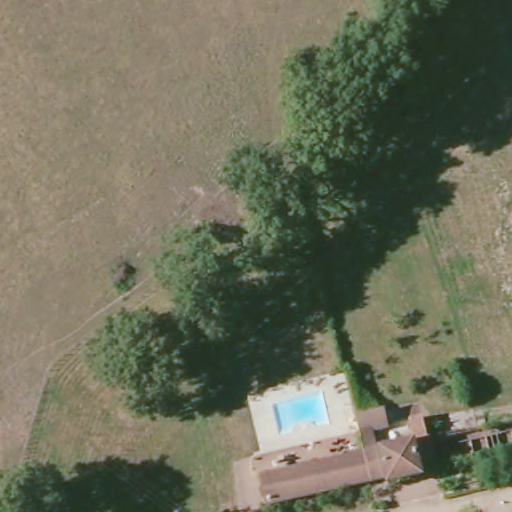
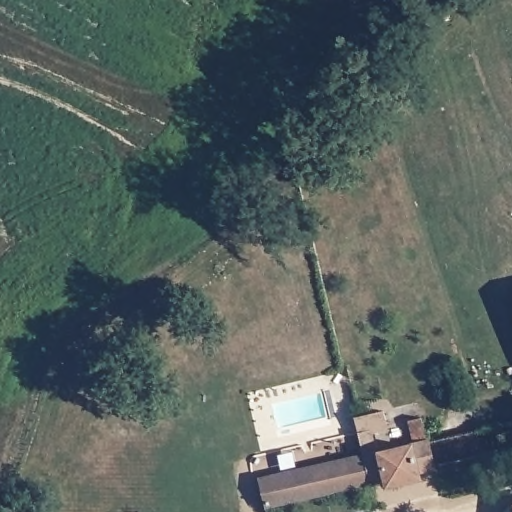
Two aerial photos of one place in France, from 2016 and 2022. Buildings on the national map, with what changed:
unchanged [(375,486),(368,457),(359,416),(385,408),(390,423),(375,429),(380,449),(412,441),(408,419),(422,417),(432,441),(440,469),(389,484),(375,486)]
unchanged [(375,486),(268,512),(263,512),(256,483),(368,457),(375,486)]

